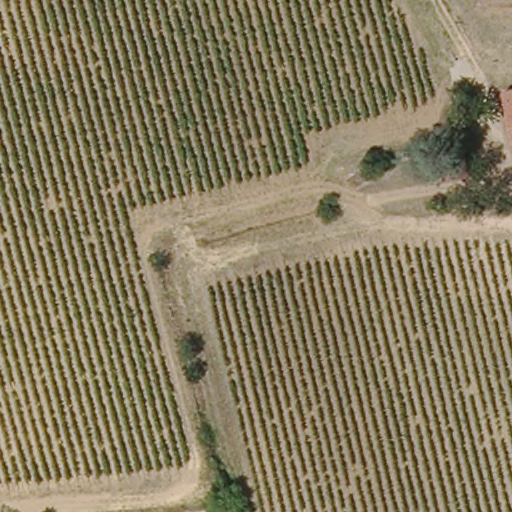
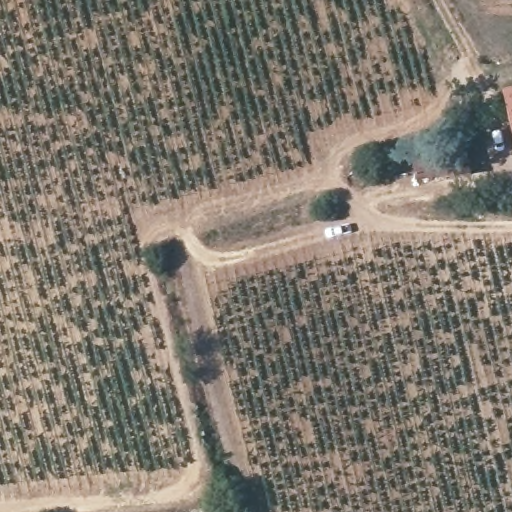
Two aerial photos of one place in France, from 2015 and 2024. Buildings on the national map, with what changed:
unchanged [(506,96),(512,95),(512,130),(506,96)]
unchanged [(472,177),(439,183),(433,156),(465,150),(472,177)]

